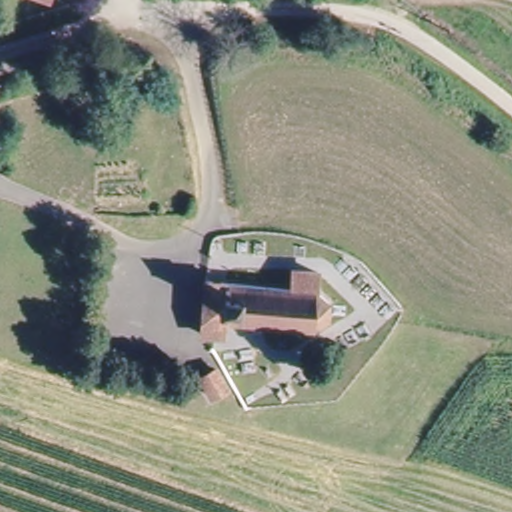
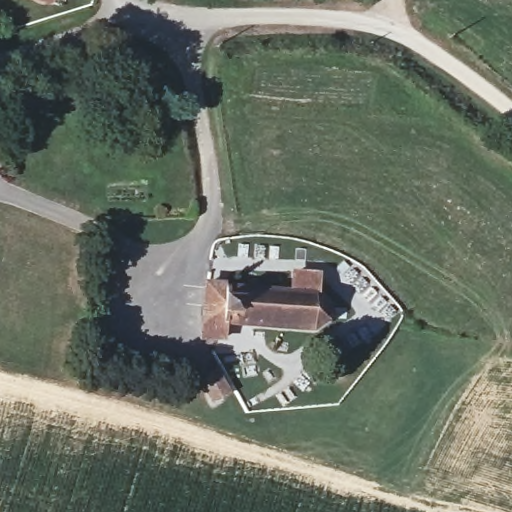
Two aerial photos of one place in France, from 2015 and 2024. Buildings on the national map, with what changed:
unchanged [(15,4),(15,0),(53,0),(52,9),(15,4)]
unchanged [(200,280),(290,290),(294,269),(315,272),(315,289),(322,297),(324,303),(322,315),(315,321),(302,325),(220,319),(217,332),(197,333),(200,280)]
unchanged [(207,406),(198,387),(213,380),(221,400),(207,406)]

